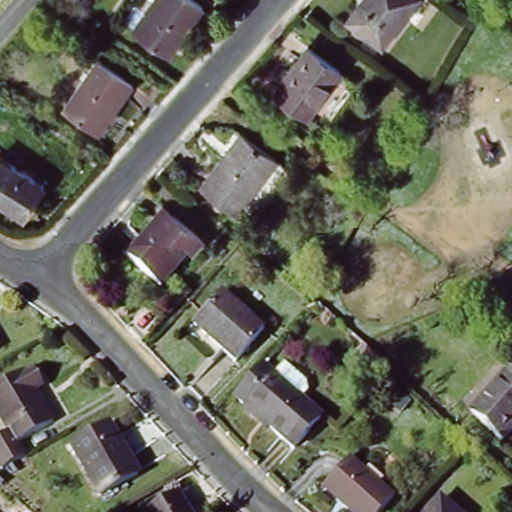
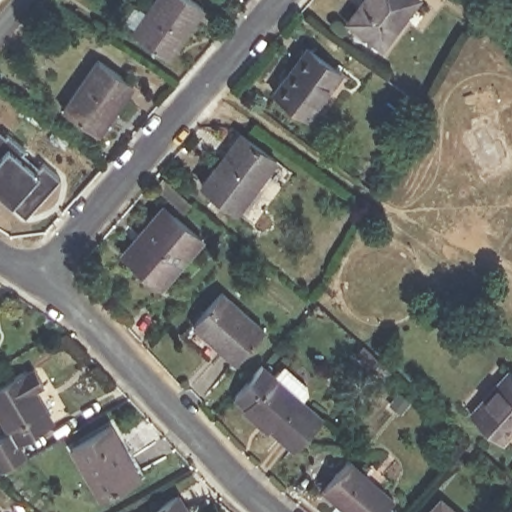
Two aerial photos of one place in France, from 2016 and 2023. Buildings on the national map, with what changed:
unchanged [(159,0),(198,0),(208,6),(169,54),(135,31),(159,0)]
unchanged [(364,0),(421,0),(383,47),(347,21),(364,0)]
unchanged [(299,112),(266,89),(301,43),(334,69),(299,112)]
unchanged [(137,85),(101,132),(66,108),(100,60),(137,85)]
unchanged [(198,181),(241,130),(289,165),(246,218),(198,181)]
unchanged [(0,200),(0,155),(48,185),(26,216),(0,200)]
unchanged [(124,255),(169,206),(204,237),(160,286),(124,255)]
unchanged [(226,293),(266,331),(238,359),(198,321),(226,293)]
unchanged [(0,348),(1,350),(0,351),(0,348)]
unchanged [(276,374),(289,362),(314,385),(313,390),(310,396),(305,399),(324,419),(294,449),(238,395),(267,365),(276,374)]
unchanged [(36,371),(45,384),(34,390),(39,399),(4,420),(0,413),(0,388),(24,374),(26,378),(36,371)]
unchanged [(475,411),(512,374),(512,436),(507,441),(475,411)]
unchanged [(24,454),(0,468),(0,434),(9,429),(4,420),(39,399),(53,424),(18,444),(24,454)]
unchanged [(91,473),(73,442),(113,419),(131,450),(91,473)]
unchanged [(104,495),(91,473),(131,450),(144,473),(104,495)]
unchanged [(353,459),(396,498),(383,512),(355,512),(326,486),(353,459)]
unchanged [(146,509),(181,489),(193,508),(195,512),(147,512),(146,509)]
unchanged [(448,497),(462,512),(433,512),(448,497)]

